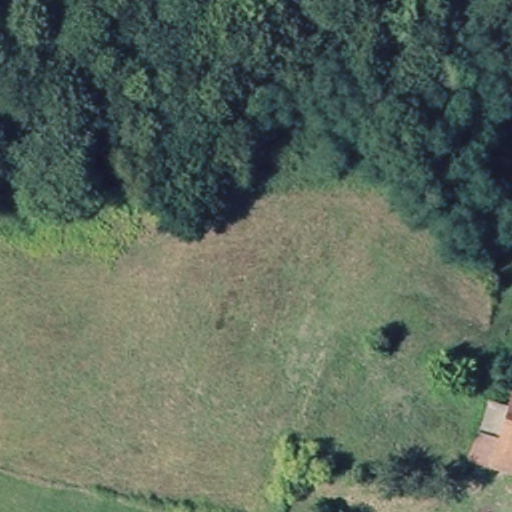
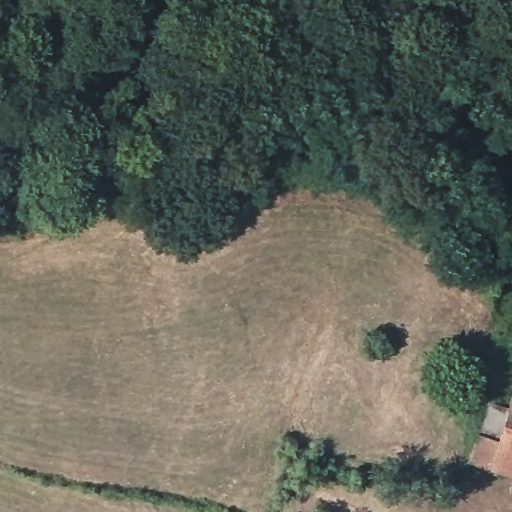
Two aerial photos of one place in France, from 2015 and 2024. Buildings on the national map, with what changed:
unchanged [(503,406),(512,385),(512,409),(503,406)]
unchanged [(503,406),(512,409),(512,478),(488,471),(503,406)]

